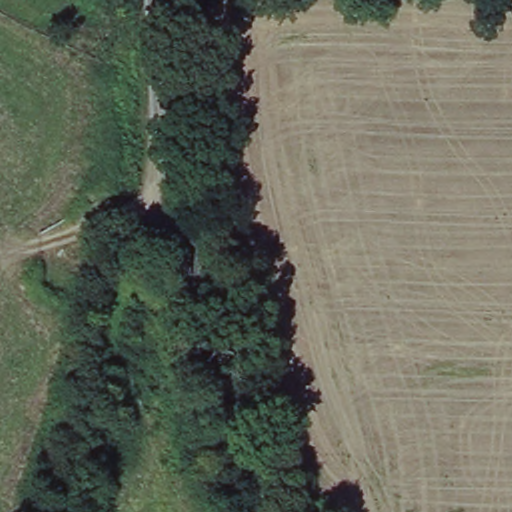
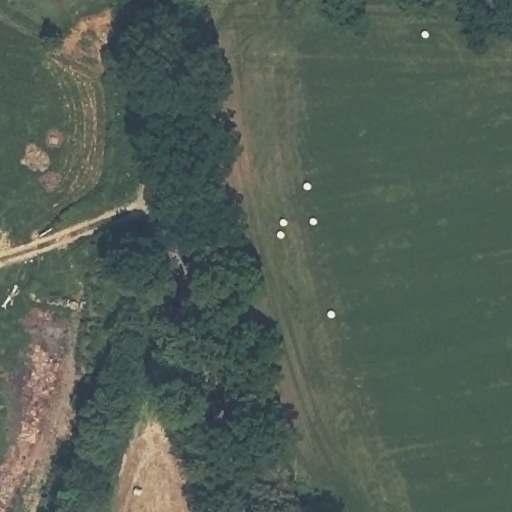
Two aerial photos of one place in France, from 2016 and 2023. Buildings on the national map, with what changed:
unchanged [(314,512),(285,512),(283,499),(309,492),(314,512)]

